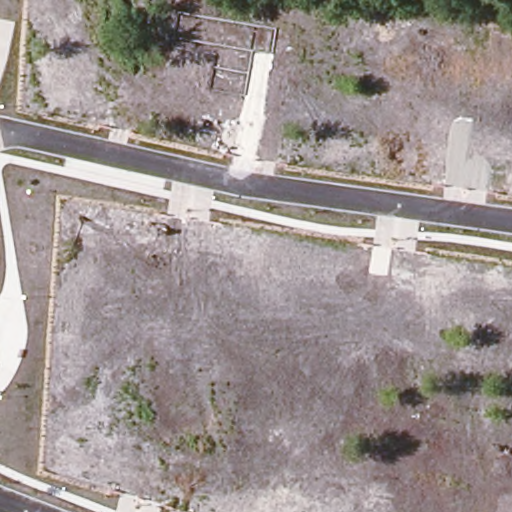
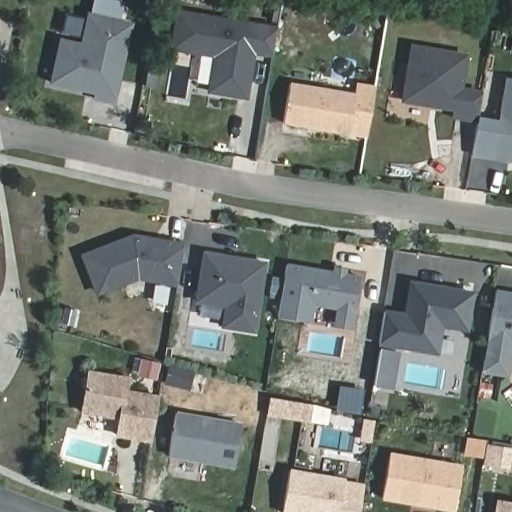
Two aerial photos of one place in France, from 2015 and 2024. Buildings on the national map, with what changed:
new [(169,50),(175,9),(275,26),(271,56),(254,54),(247,100),(206,93),(211,57),(169,50)]
new [(86,11),(134,21),(115,101),(114,106),(90,100),(92,95),(47,86),(57,38),(79,43),(86,11)]
new [(400,102),(410,44),(468,54),(462,87),(483,91),(477,121),(450,116),(451,110),(400,102)]
new [(511,158),(510,163),(492,160),(505,78),(512,79),(512,158),(511,158)]
new [(353,94),(355,83),(375,86),(366,138),(349,135),(281,124),(290,82),(353,94)]
new [(177,287),(137,280),(97,297),(80,255),(134,234),(185,242),(177,287)]
new [(256,333),(220,327),(224,307),(195,303),(203,252),(266,260),(256,333)]
new [(328,326),(330,309),(313,308),(310,323),(277,318),(286,264),(331,271),(331,267),(346,269),(346,273),(359,274),(351,329),(328,326)]
new [(442,329),(438,355),(377,345),(382,312),(403,315),(410,281),(475,291),(468,331),(442,329)]
new [(510,378),(480,373),(494,291),(512,293),(512,365),(510,378)]
new [(393,390),(372,387),(380,349),(400,353),(393,390)]
new [(128,389),(160,396),(151,442),(115,437),(117,419),(79,413),(86,369),(130,377),(128,389)]
new [(277,395),(317,407),(313,424),(274,416),(277,395)]
new [(235,469),(167,457),(175,411),(242,422),(235,469)]
new [(389,453),(461,464),(454,512),(382,500),(389,453)]
new [(345,481),(363,484),(359,512),(281,512),(286,470),(345,477),(345,481)]
new [(494,500),(512,502),(512,512),(492,512),(494,500)]

